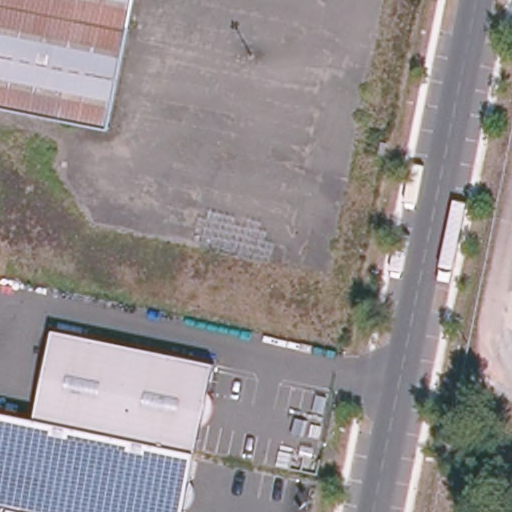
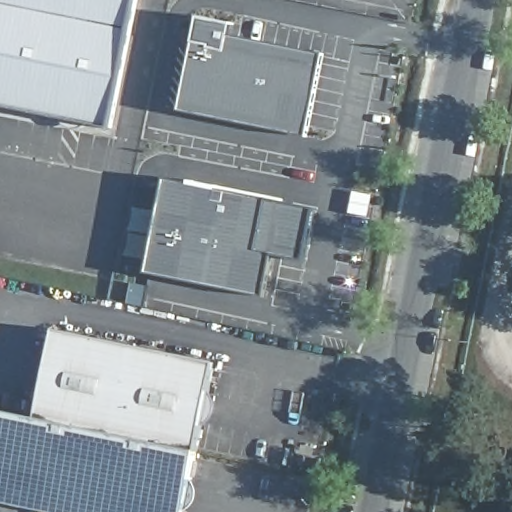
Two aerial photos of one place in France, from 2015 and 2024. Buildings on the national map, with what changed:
unchanged [(64,119),(0,106),(0,0),(88,0),(64,119)]
unchanged [(111,129),(64,119),(88,0),(137,0),(111,129)]
new [(201,15),(235,22),(232,34),(326,54),(309,137),(181,110),(201,15)]
new [(166,177),(317,207),(307,261),(274,255),(266,297),(147,272),(166,177)]
unchanged [(184,512),(44,512),(0,503),(0,410),(39,418),(59,330),(216,364),(198,454),(184,512)]

